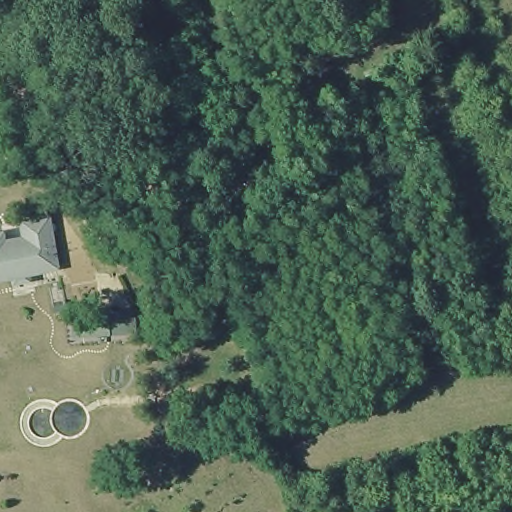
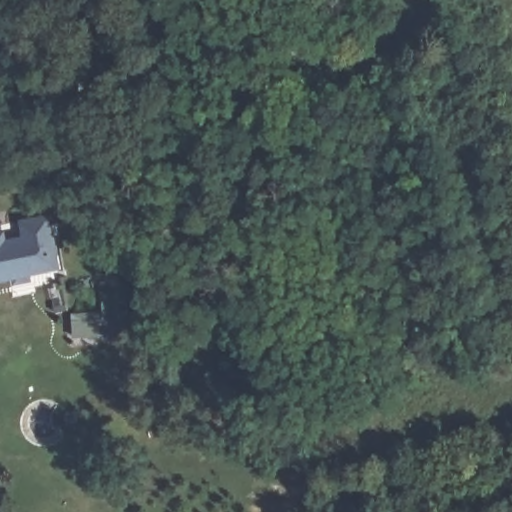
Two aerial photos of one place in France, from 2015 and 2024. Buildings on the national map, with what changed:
unchanged [(57,268),(0,281),(0,228),(48,217),(57,268)]
unchanged [(140,308),(142,335),(77,340),(75,315),(140,308)]

